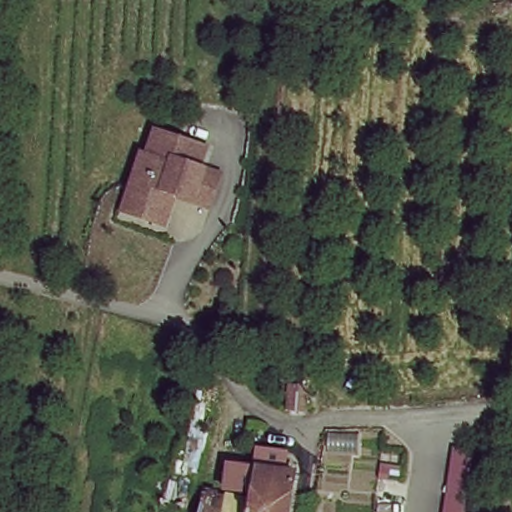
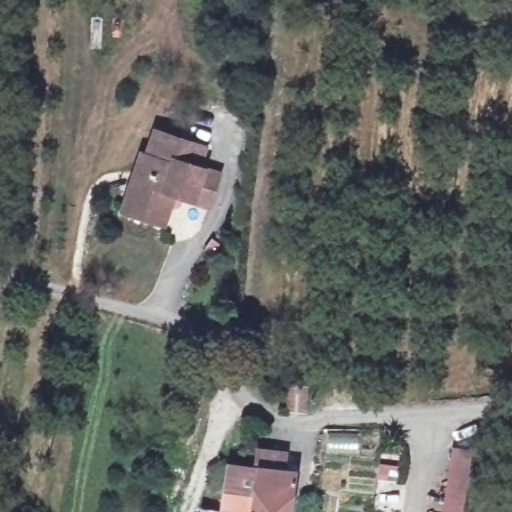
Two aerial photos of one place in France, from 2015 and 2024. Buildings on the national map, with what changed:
unchanged [(203,205),(159,190),(149,221),(118,209),(142,153),(148,155),(158,131),(176,139),(201,148),(193,168),(214,174),(203,205)]
unchanged [(288,403),(281,403),(283,376),(301,380),(299,403),(288,403)]
unchanged [(461,512),(441,512),(451,450),(469,454),(461,512)]
unchanged [(251,504),(256,469),(280,469),(284,492),(285,509),(285,512),(250,512),(251,504)]
unchanged [(204,498),(251,504),(250,512),(201,512),(204,498)]

